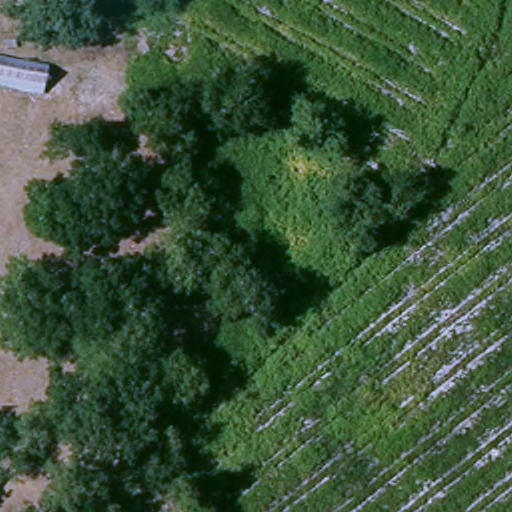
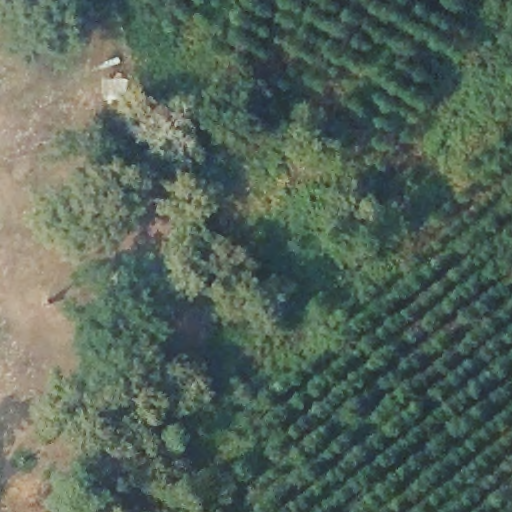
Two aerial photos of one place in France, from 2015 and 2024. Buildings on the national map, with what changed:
demolished [(0,81),(0,53),(51,64),(46,89),(0,81)]

